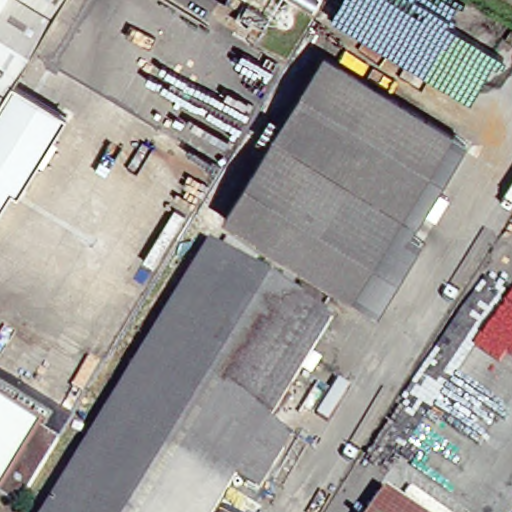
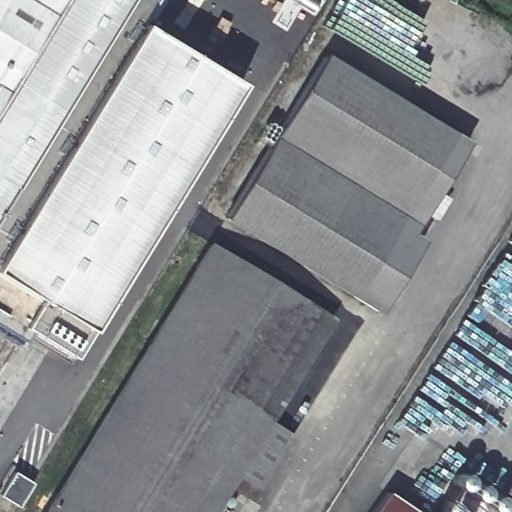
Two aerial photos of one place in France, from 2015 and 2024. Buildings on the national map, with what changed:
unchanged [(11,78),(0,96),(0,0),(59,0),(11,78)]
new [(141,23),(240,83),(89,331),(73,357),(22,327),(25,321),(0,307),(0,96),(11,78),(59,0),(156,0),(141,23)]
unchanged [(330,60),(433,124),(334,286),(231,223),(330,60)]
demolished [(20,194),(11,189),(0,207),(0,96),(11,78),(68,114),(20,194)]
new [(468,142),(413,232),(426,240),(380,314),(334,286),(433,124),(468,142)]
unchanged [(281,436),(250,487),(226,473),(202,512),(37,512),(201,244),(322,318),(258,422),(281,436)]
demolished [(30,429),(49,440),(8,506),(0,502),(0,406),(33,425),(30,429)]
unchanged [(368,512),(382,491),(411,512),(368,512)]

